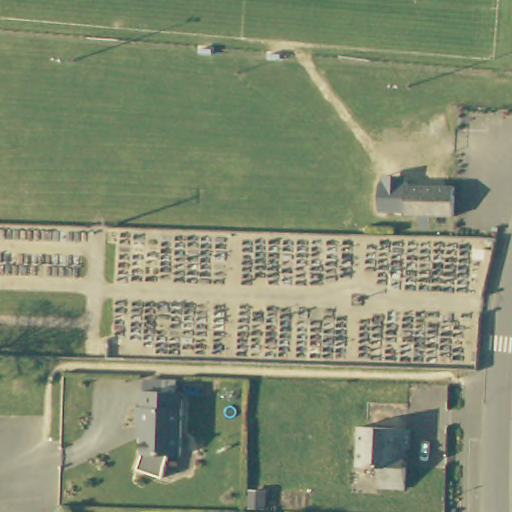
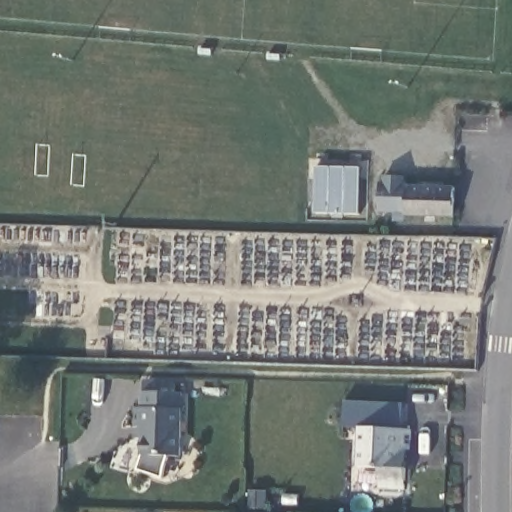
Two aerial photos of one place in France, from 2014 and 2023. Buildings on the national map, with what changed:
new [(316,168),(361,168),(360,215),(316,214),(316,168)]
unchanged [(401,193),(402,185),(422,185),(421,193),(425,193),(425,195),(471,197),(471,222),(422,220),(422,217),(397,216),(398,192),(401,193)]
unchanged [(176,388),(182,388),(180,452),(169,451),(166,463),(162,474),(137,465),(142,450),(142,433),(140,433),(141,422),(135,422),(135,403),(141,403),(142,387),(144,387),(144,376),(149,376),(153,376),(172,377),(176,377),(176,388)]
unchanged [(409,429),(408,451),(398,451),(398,468),(405,468),(403,492),(377,491),(377,471),(356,471),(357,427),(409,429)]

